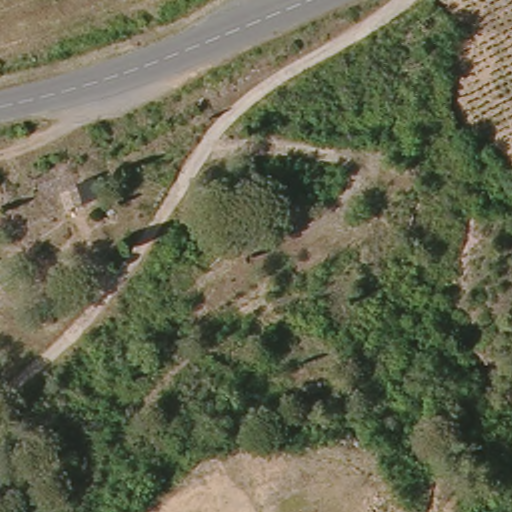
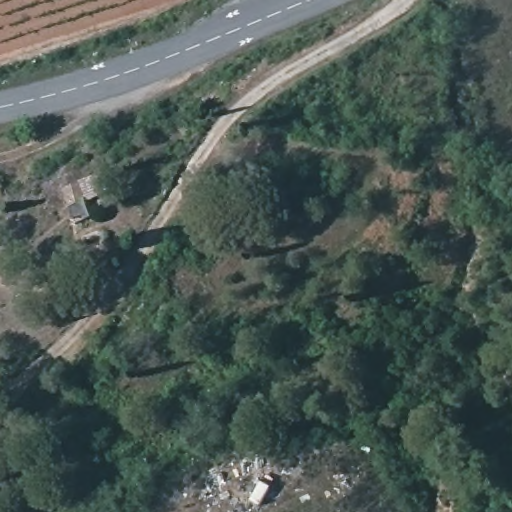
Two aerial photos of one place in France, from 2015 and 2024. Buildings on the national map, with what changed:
unchanged [(292,215),(308,202),(332,217),(308,237),(292,215)]

